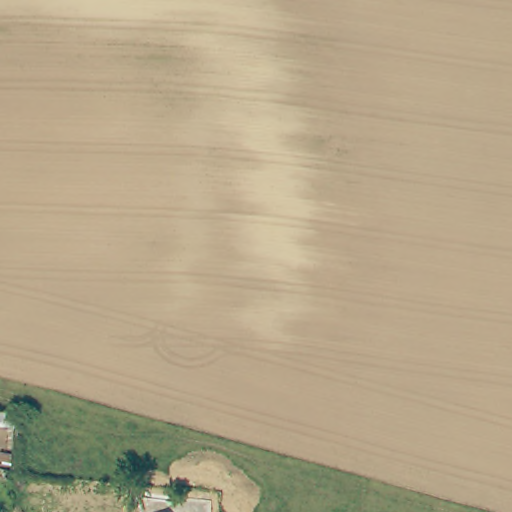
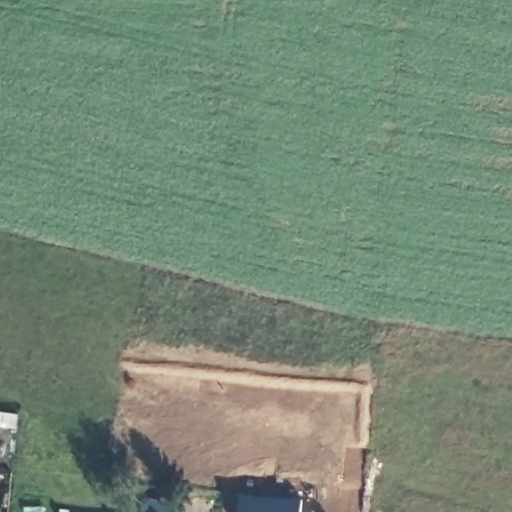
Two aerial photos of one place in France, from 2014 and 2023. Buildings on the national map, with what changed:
unchanged [(17,413),(15,429),(0,428),(0,412),(17,413)]
new [(301,501),(300,512),(238,512),(240,497),(301,501)]

